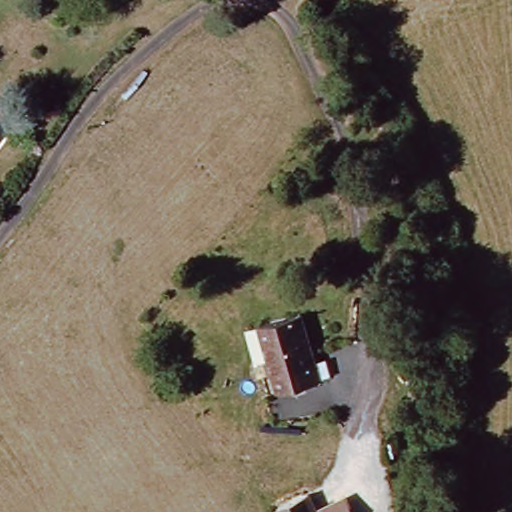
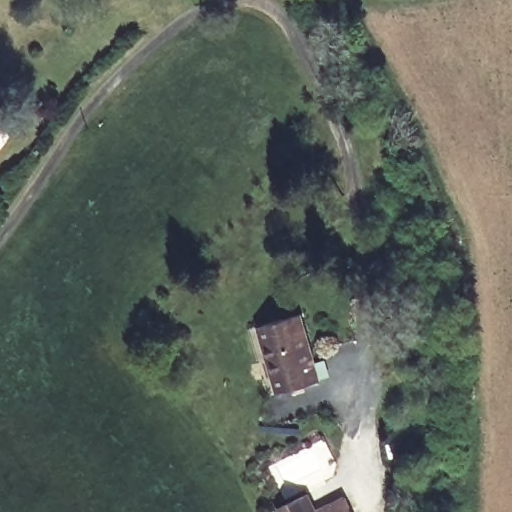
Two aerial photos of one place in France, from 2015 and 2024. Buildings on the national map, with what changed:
unchanged [(313,387),(270,399),(252,333),(295,320),(313,387)]
unchanged [(310,500),(316,512),(285,512),(310,500)]
unchanged [(348,503),(353,512),(329,512),(348,503)]

